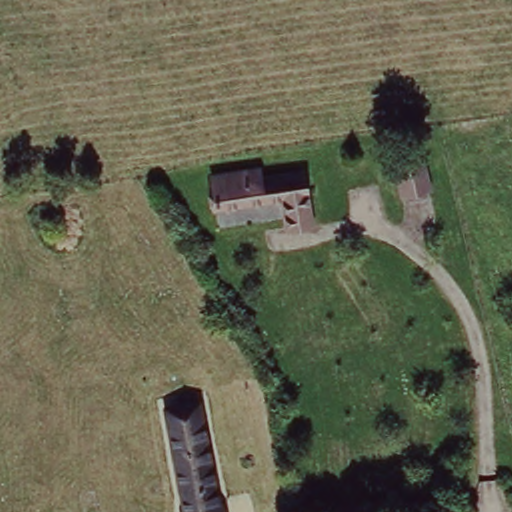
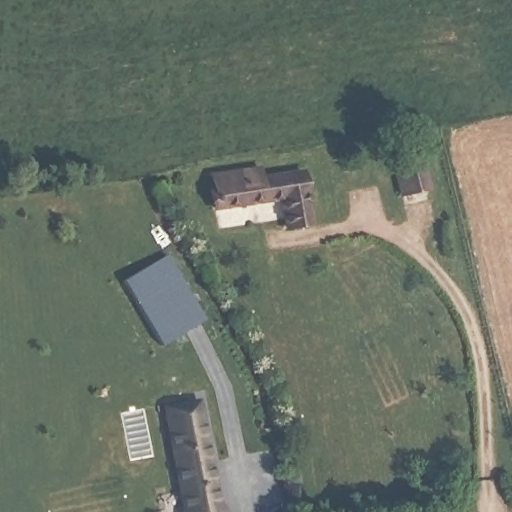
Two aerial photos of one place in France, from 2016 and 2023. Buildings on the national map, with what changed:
unchanged [(427,151),(435,184),(409,189),(401,158),(427,151)]
unchanged [(260,167),(262,178),(304,173),(311,224),(286,228),(281,199),(217,207),(211,173),(260,167)]
new [(166,254),(205,320),(161,346),(122,280),(166,254)]
unchanged [(201,414),(219,509),(224,508),(224,512),(187,512),(167,407),(184,404),(198,401),(201,414)]

